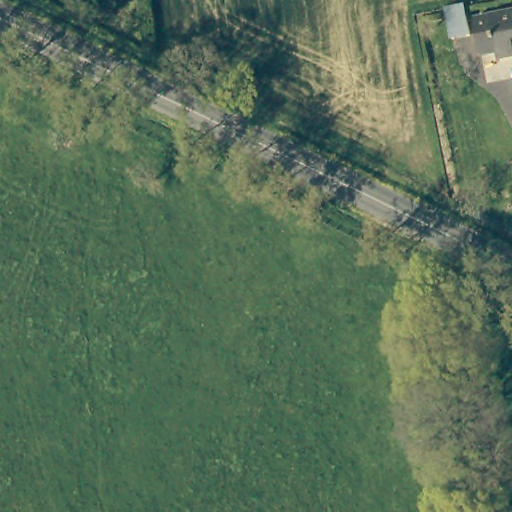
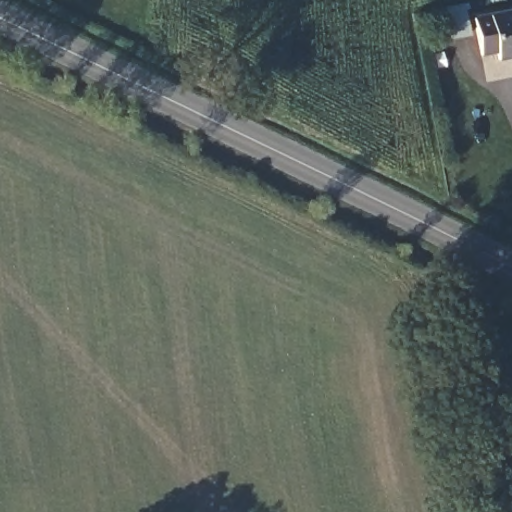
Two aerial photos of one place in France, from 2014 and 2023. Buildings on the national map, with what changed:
unchanged [(466,37),(450,40),(443,9),(459,6),(466,37)]
unchanged [(497,50),(485,52),(478,16),(512,10),(512,58),(499,60),(497,50)]

